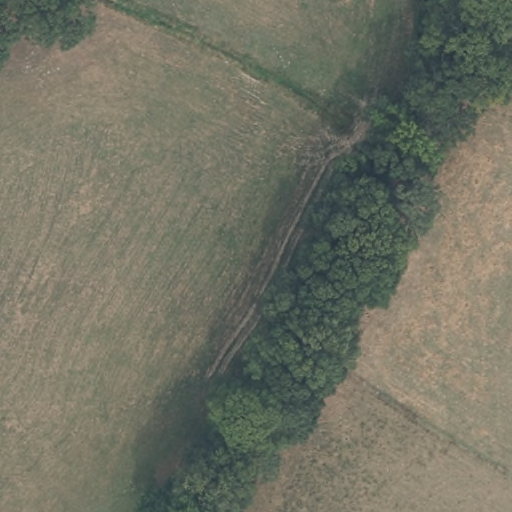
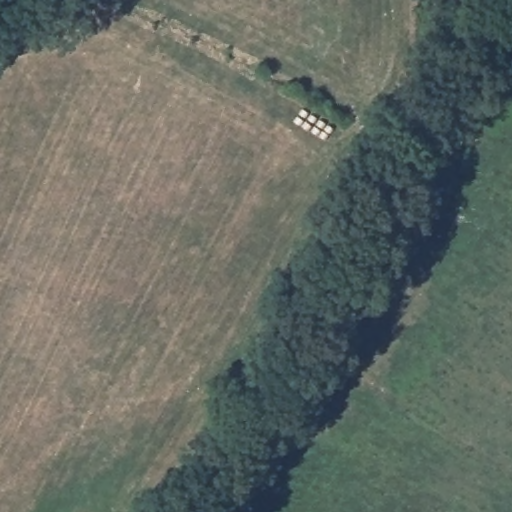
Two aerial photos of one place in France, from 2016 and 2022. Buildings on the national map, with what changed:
[]

